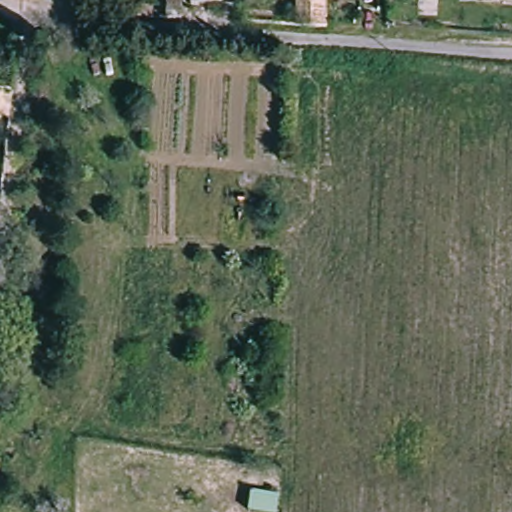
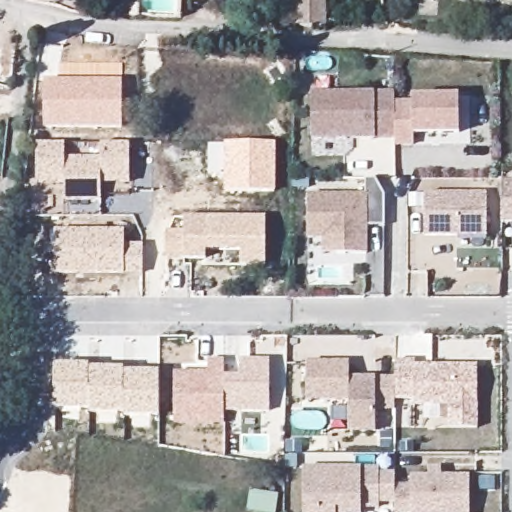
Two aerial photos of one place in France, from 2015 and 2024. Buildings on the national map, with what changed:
unchanged [(167,14),(167,0),(181,0),(181,15),(167,14)]
unchanged [(191,2),(191,0),(221,0),(222,2),(191,2)]
unchanged [(313,0),(327,0),(326,26),(300,23),(301,14),(313,13),(313,0)]
unchanged [(142,2),(157,3),(156,14),(142,13),(142,2)]
unchanged [(251,7),(265,8),(263,20),(250,20),(251,7)]
new [(124,127),(44,128),(44,79),(122,80),(124,127)]
new [(398,93),(397,140),(316,141),(315,94),(398,93)]
new [(398,107),(415,107),(415,102),(462,101),(462,137),(417,138),(417,150),(399,150),(399,143),(398,107)]
new [(275,142),(276,192),(225,193),(225,141),(275,142)]
new [(130,144),(131,184),(101,183),(101,201),(64,201),(63,183),(36,183),(36,142),(65,143),(65,158),(101,158),(101,143),(130,144)]
new [(365,193),(365,179),(374,180),(384,196),(382,226),(366,226),(367,252),(322,252),(321,238),(307,238),(309,194),(365,193)]
new [(500,184),(512,184),(512,226),(501,226),(500,184)]
new [(487,193),(486,237),(424,235),(423,194),(487,193)]
new [(266,216),(266,266),(240,266),(239,250),(206,251),(205,259),(165,259),(167,230),(184,231),(184,216),(266,216)]
new [(125,245),(144,244),(143,275),(125,275),(55,276),(55,230),(125,230),(125,245)]
new [(207,360),(225,359),(225,375),(239,374),(240,359),(270,359),(270,411),(224,413),(224,424),(176,425),(173,373),(208,373),(207,360)]
new [(414,359),(414,365),(477,365),(477,428),(447,428),(447,405),(412,405),(412,401),(395,400),(397,360),(414,359)]
new [(395,376),(395,400),(395,410),(376,411),(376,431),(347,431),(349,399),(308,400),(307,360),(350,361),(349,376),(375,375),(395,376)]
new [(160,418),(126,418),(126,412),(88,414),(88,409),(56,410),(56,365),(89,365),(90,368),(124,368),(124,373),(159,371),(160,418)]
new [(379,467),(379,473),(395,472),(394,485),(413,485),(412,475),(427,475),(427,469),(442,469),(442,475),(469,475),(468,512),(395,512),(395,503),(379,503),(379,508),(361,509),(361,512),(303,512),(303,467),(379,467)]
new [(279,495),(276,512),(253,512),(247,511),(250,491),(279,495)]

